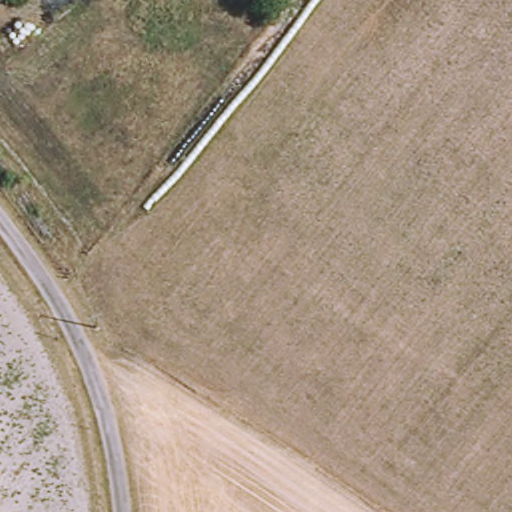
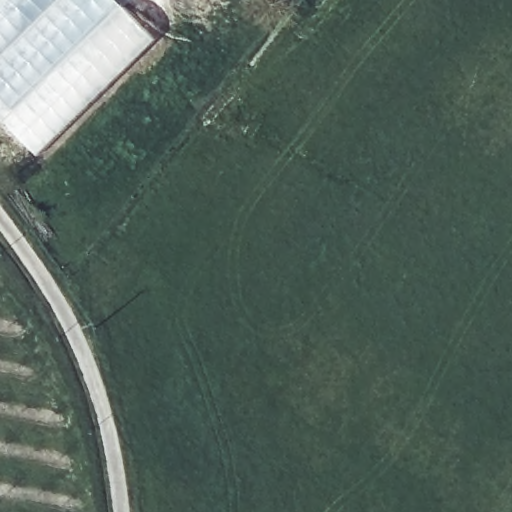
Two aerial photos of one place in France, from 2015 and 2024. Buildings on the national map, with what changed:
new [(0,0),(120,0),(158,38),(40,153),(0,113),(0,0)]

